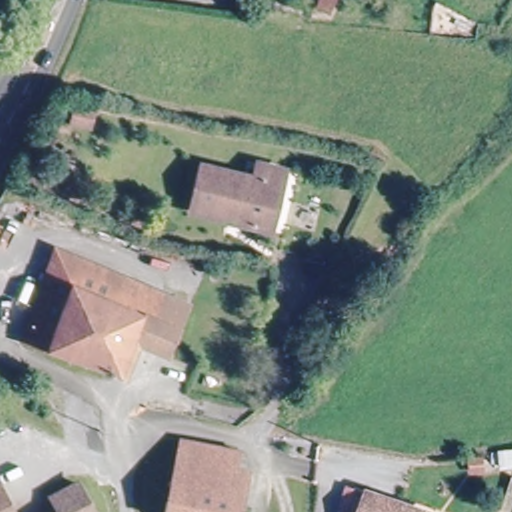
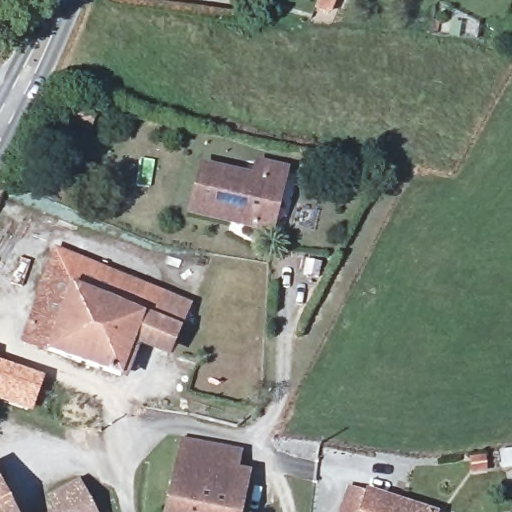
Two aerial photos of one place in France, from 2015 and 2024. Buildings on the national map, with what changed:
unchanged [(114,116),(112,141),(83,139),(85,113),(114,116)]
unchanged [(272,229),(200,217),(206,165),(253,174),(256,156),(286,161),(272,229)]
unchanged [(175,331),(149,320),(125,377),(50,345),(73,293),(83,270),(184,307),(175,331)]
unchanged [(56,285),(73,293),(50,345),(32,337),(56,285)]
new [(33,412),(0,401),(0,360),(46,377),(33,412)]
unchanged [(169,451),(227,455),(226,475),(168,471),(169,451)]
unchanged [(226,475),(245,477),(243,512),(167,512),(168,471),(226,475)]
unchanged [(351,483),(369,490),(370,486),(437,507),(435,512),(342,512),(351,483)]
unchanged [(57,500),(85,485),(103,512),(63,512),(57,500)]
unchanged [(0,487),(13,512),(0,512),(0,487)]

